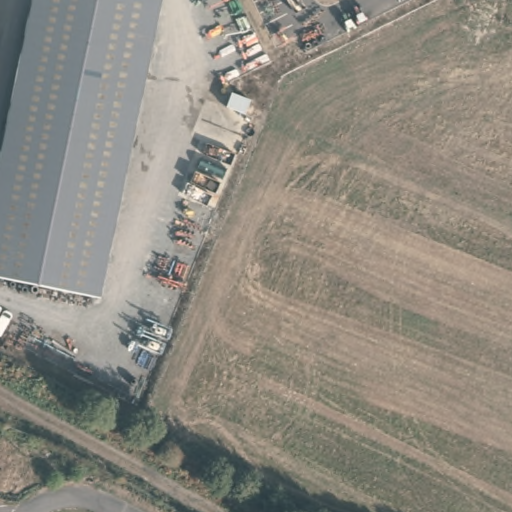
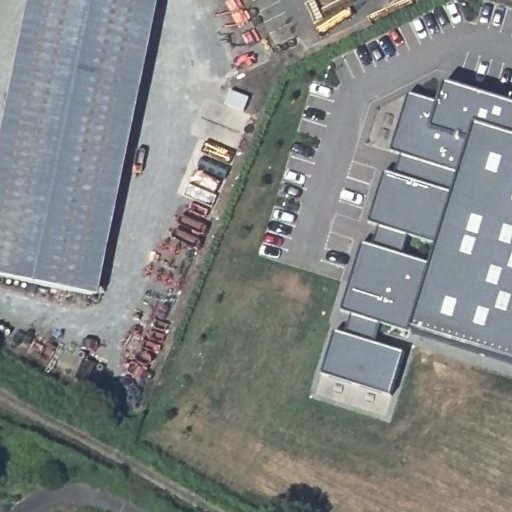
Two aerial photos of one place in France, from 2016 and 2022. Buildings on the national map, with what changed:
unchanged [(0,277),(0,145),(29,0),(160,0),(99,297),(0,277)]
new [(410,332),(437,244),(469,142),(430,129),(439,102),(445,82),(512,103),(512,364),(410,332)]
new [(390,395),(321,373),(335,331),(347,333),(353,314),(341,311),(363,242),(374,245),(380,226),(369,222),(385,171),(396,175),(403,156),(391,152),(410,94),(439,102),(430,129),(469,142),(437,244),(411,236),(405,255),(431,263),(410,332),(381,323),(375,343),(403,352),(390,395)]

